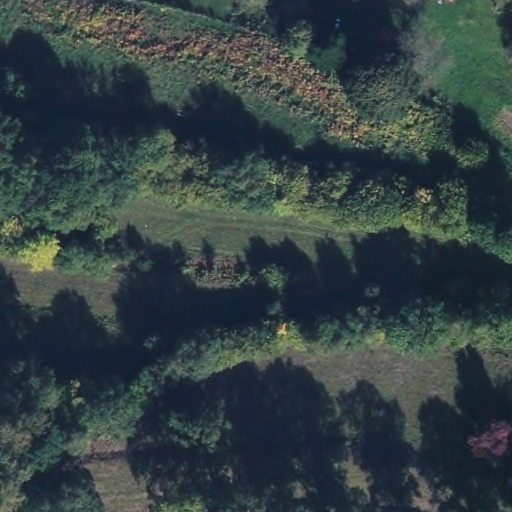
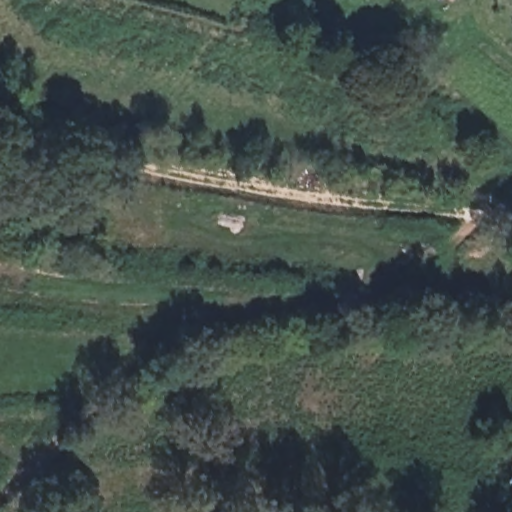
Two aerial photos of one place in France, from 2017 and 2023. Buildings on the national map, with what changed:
unchanged [(460,2),(457,0),(461,0),(460,2)]

